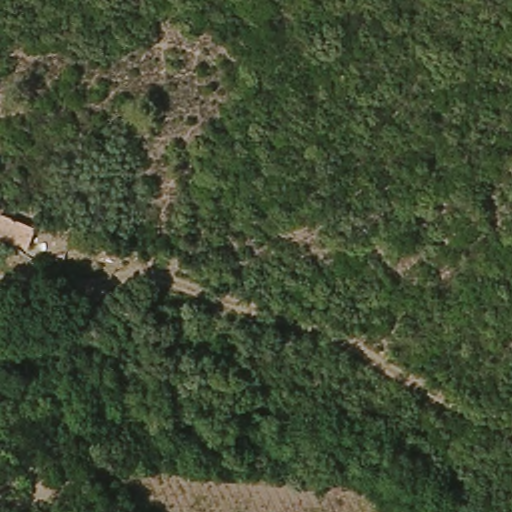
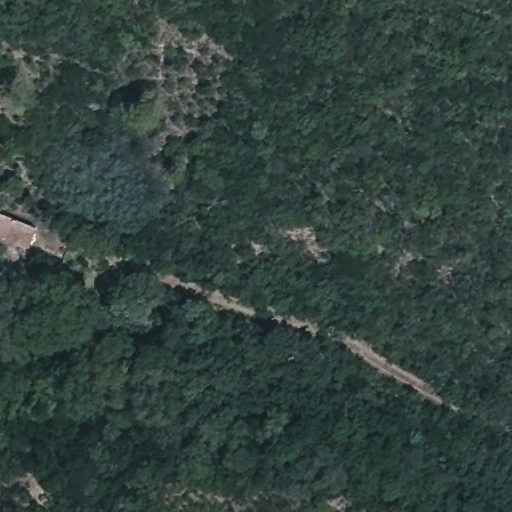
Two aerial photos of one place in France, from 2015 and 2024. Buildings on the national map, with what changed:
unchanged [(5,214),(28,223),(23,244),(0,235),(5,214)]

